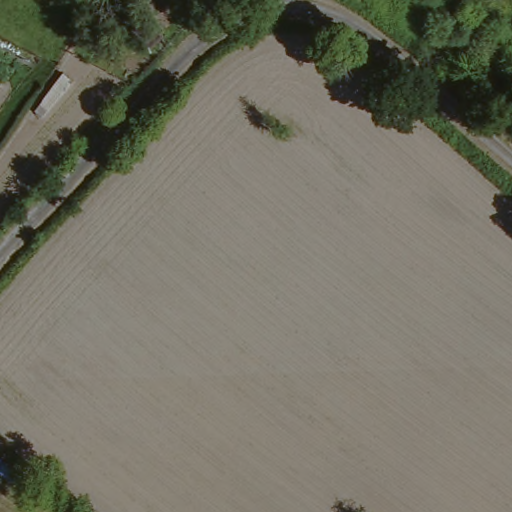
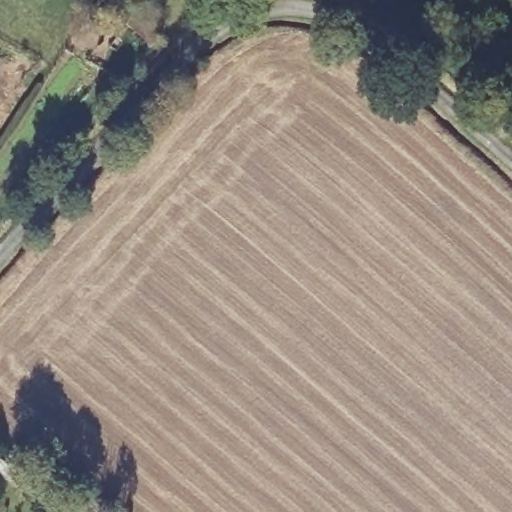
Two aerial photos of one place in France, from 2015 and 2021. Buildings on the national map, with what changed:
unchanged [(133,0),(168,29),(154,54),(104,11),(115,0),(133,0)]

